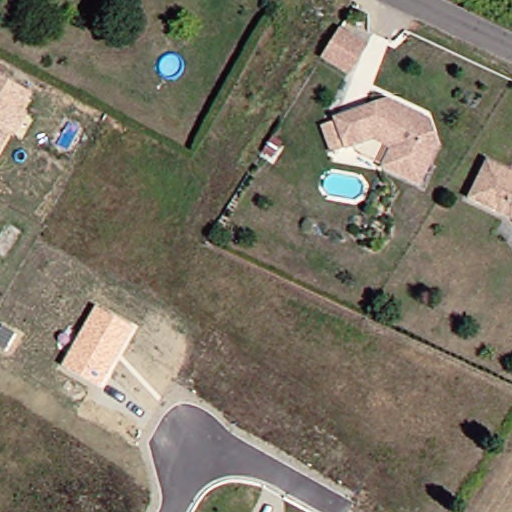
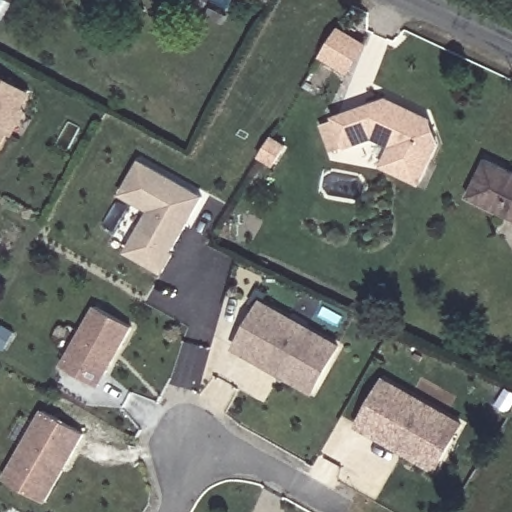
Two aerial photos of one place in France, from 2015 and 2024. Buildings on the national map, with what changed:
unchanged [(340,27),(366,44),(349,71),(323,55),(340,27)]
unchanged [(32,92),(23,110),(28,113),(15,137),(8,134),(0,149),(0,74),(32,92)]
unchanged [(351,142),(340,146),(330,118),(377,98),(390,104),(423,121),(427,132),(431,145),(410,184),(375,166),(376,165),(354,153),(351,142)]
unchanged [(461,195),(481,158),(512,174),(512,223),(510,220),(461,195)]
new [(148,213),(119,197),(138,164),(200,199),(170,254),(172,255),(160,275),(137,261),(125,255),(135,237),(148,213)]
new [(341,346),(313,395),(232,350),(260,301),(341,346)]
unchanged [(61,365),(95,305),(134,327),(100,386),(61,365)]
new [(357,426),(382,381),(409,396),(427,406),(460,424),(435,469),(401,451),(374,436),(357,426)]
new [(86,434),(46,503),(3,478),(41,410),(86,434)]

